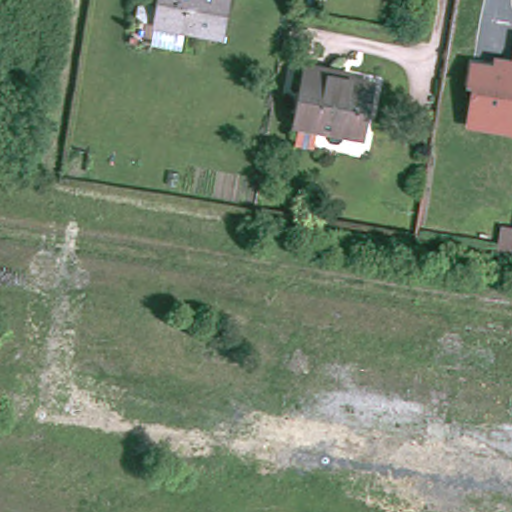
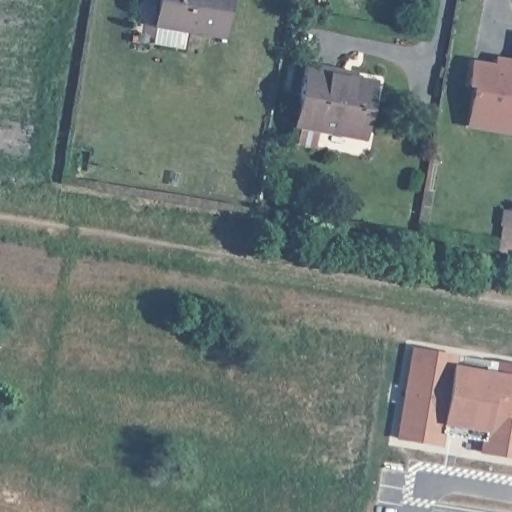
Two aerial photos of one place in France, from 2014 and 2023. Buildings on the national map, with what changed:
unchanged [(165,0),(235,0),(229,36),(161,24),(165,0)]
unchanged [(472,87),(467,86),(472,60),(492,64),(494,57),(512,59),(512,133),(467,125),(472,87)]
unchanged [(304,109),(312,66),(348,73),(347,78),(380,84),(374,113),(368,112),(364,136),(324,129),(301,124),(304,109)]
new [(452,365),(495,371),(497,363),(512,365),(512,460),(477,454),(479,442),(442,435),(440,447),(394,439),(410,347),(456,354),(452,365)]

